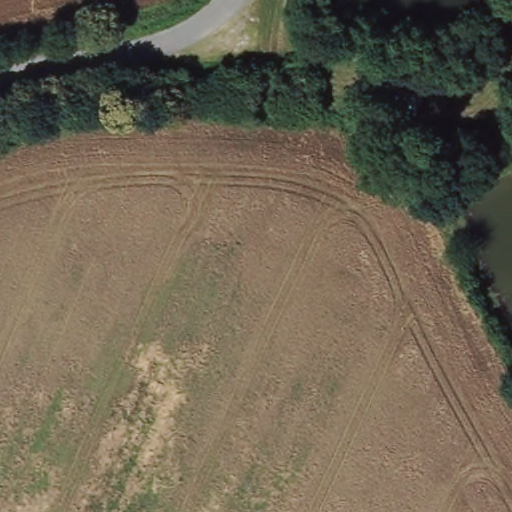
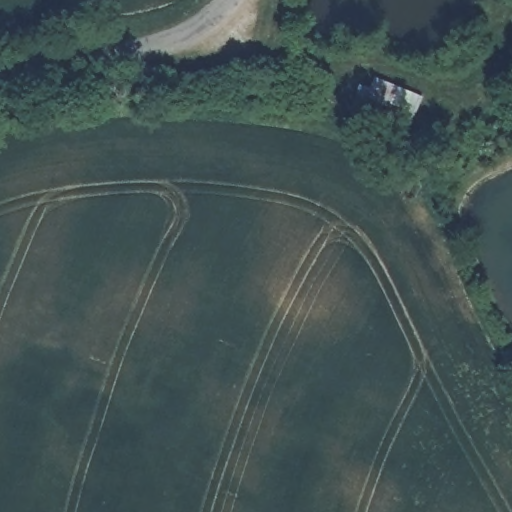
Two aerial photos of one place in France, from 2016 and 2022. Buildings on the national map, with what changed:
unchanged [(424,98),(408,139),(356,116),(372,77),(424,98)]

